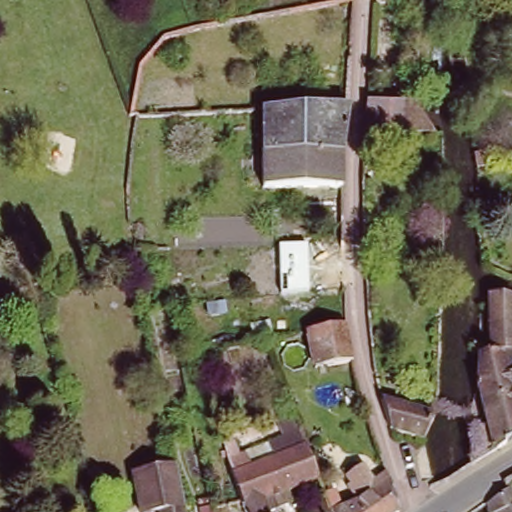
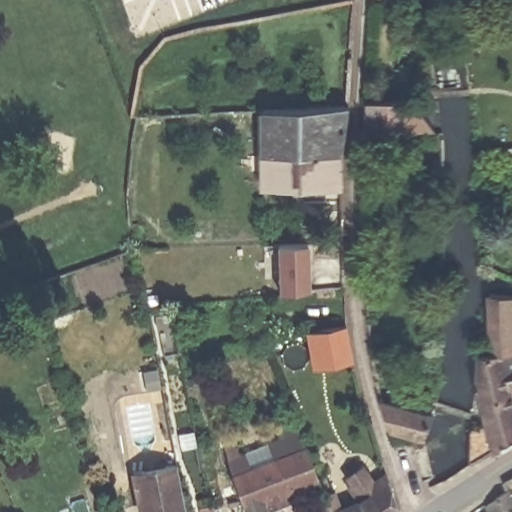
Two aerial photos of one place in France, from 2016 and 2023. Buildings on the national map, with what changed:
unchanged [(347,104),(342,155),(344,185),(262,186),(262,109),(347,104)]
unchanged [(369,133),(370,107),(423,107),(435,132),(369,133)]
unchanged [(512,202),(494,204),(490,167),(512,166),(512,202)]
new [(278,244),(308,243),(310,289),(280,293),(278,244)]
unchanged [(512,294),(512,353),(495,354),(495,293),(512,294)]
unchanged [(349,325),(355,360),(317,365),(309,330),(349,325)]
unchanged [(472,429),(488,423),(477,390),(480,354),(495,354),(512,353),(512,437),(469,462),(472,429)]
unchanged [(433,419),(426,442),(395,432),(385,404),(433,419)]
unchanged [(225,441),(237,440),(242,452),(284,436),(280,422),(295,420),(320,479),(272,503),(275,512),(247,512),(235,474),(225,441)]
unchanged [(181,465),(191,512),(143,512),(135,472),(181,465)]
unchanged [(308,512),(307,508),(338,493),(345,502),(355,495),(355,485),(387,468),(405,512),(308,512)]
unchanged [(512,480),(512,506),(509,494),(505,483),(512,480)]
unchanged [(509,494),(512,506),(512,512),(484,512),(484,509),(509,494)]

